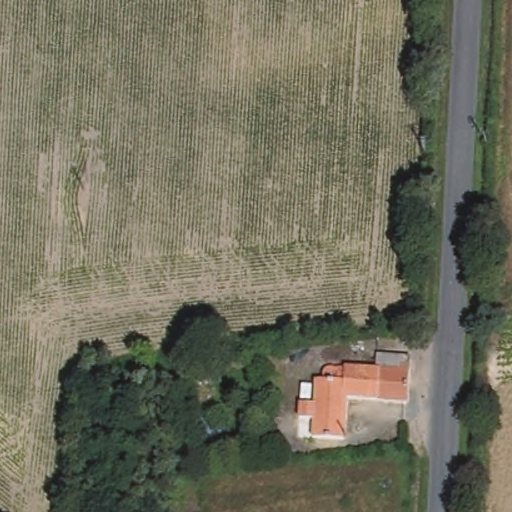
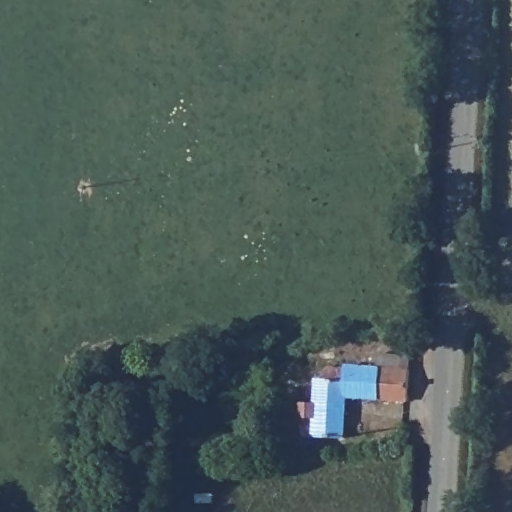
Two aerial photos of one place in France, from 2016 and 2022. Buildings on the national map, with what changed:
unchanged [(324,377),(325,365),(375,367),(376,355),(400,356),(400,368),(407,368),(405,399),(347,396),(343,438),(315,436),(311,436),(311,416),(296,415),(297,398),(313,399),(314,377),(324,377)]

